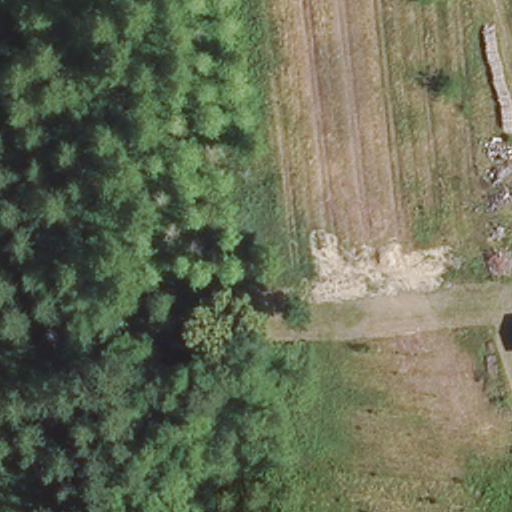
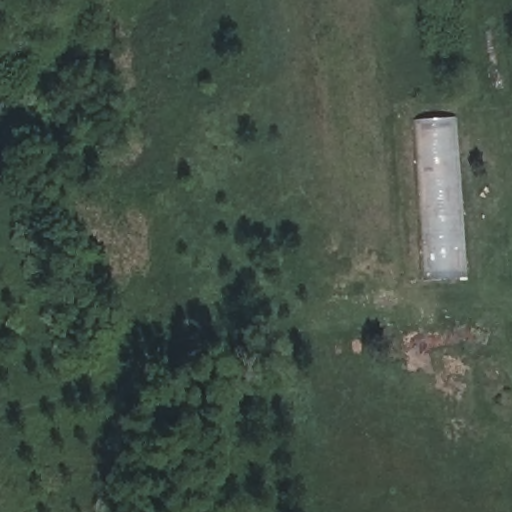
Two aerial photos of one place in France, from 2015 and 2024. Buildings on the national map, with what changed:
new [(422,280),(411,119),(452,117),(463,278),(422,280)]
unchanged [(478,386),(495,385),(498,409),(481,410),(478,386)]

